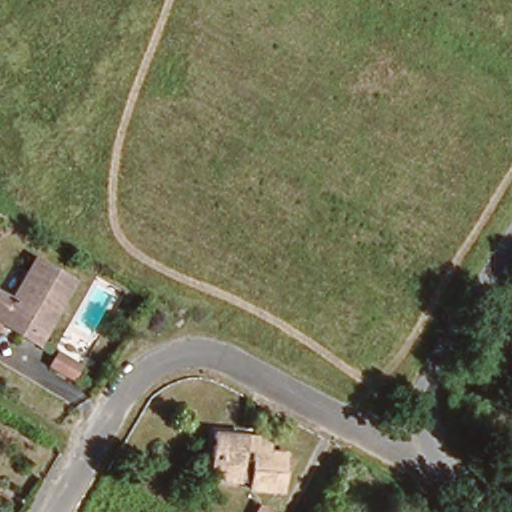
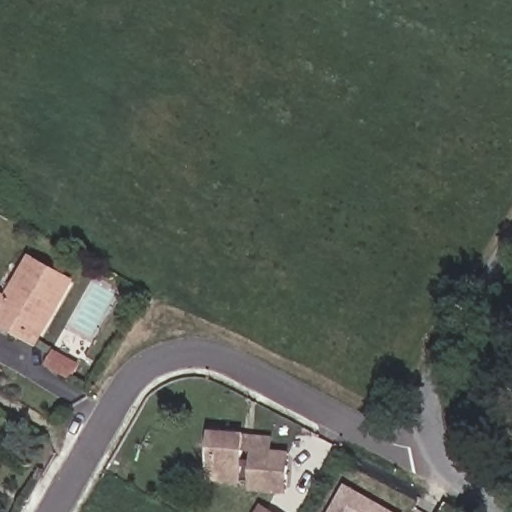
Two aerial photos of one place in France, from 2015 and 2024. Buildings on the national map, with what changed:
unchanged [(6,299),(29,257),(69,277),(32,339),(0,321),(0,297),(6,299)]
unchanged [(96,368),(90,376),(70,362),(75,354),(96,368)]
unchanged [(285,497),(248,493),(248,487),(211,485),(213,442),(244,443),(266,444),(266,462),(286,462),(285,497)]
new [(395,512),(331,512),(347,484),(395,512)]
unchanged [(265,512),(259,512),(260,509),(265,512)]

